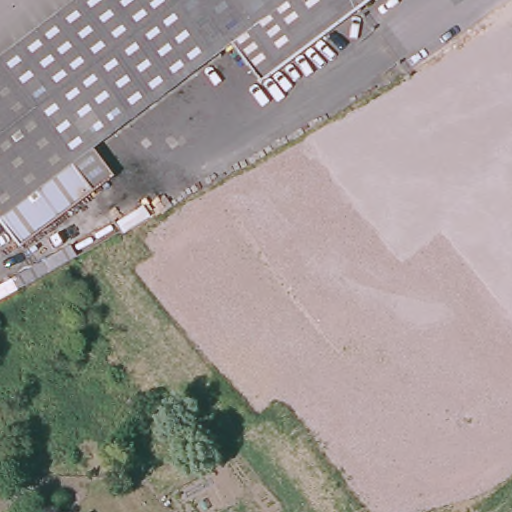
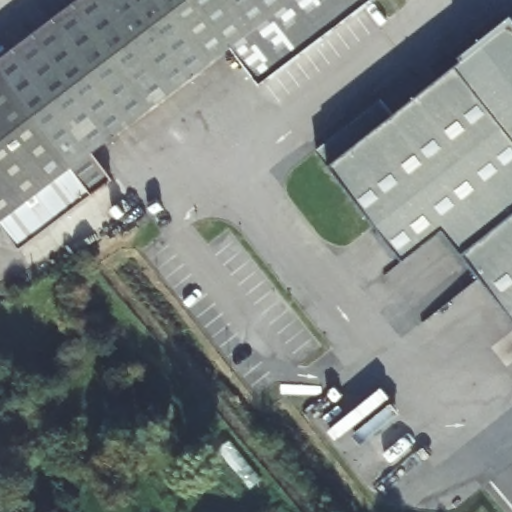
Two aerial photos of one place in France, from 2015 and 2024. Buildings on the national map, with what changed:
unchanged [(256,82),(227,43),(144,106),(87,151),(109,180),(17,251),(0,229),(0,55),(72,0),(361,0),(256,82)]
new [(393,115),(512,22),(512,23),(512,316),(444,229),(404,260),(317,150),(381,99),(393,115)]

